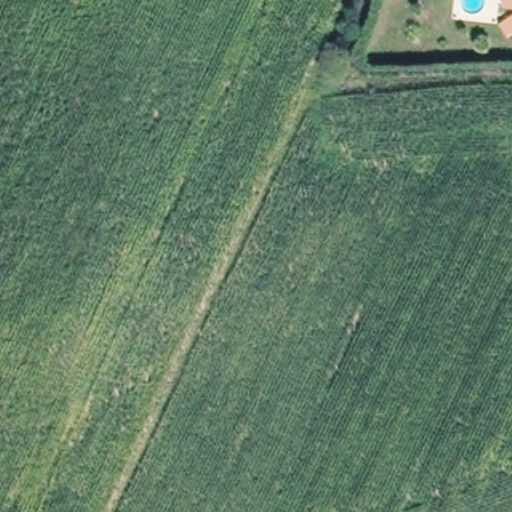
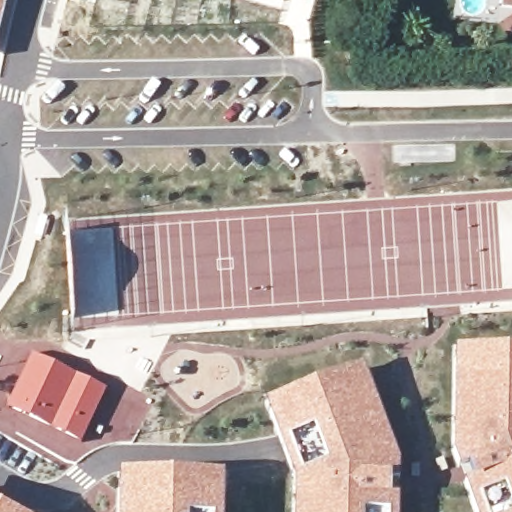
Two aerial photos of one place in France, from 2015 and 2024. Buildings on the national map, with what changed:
new [(0,0),(7,0),(0,28),(0,0)]
unchanged [(506,0),(512,0),(512,5),(505,4),(506,0)]
new [(512,348),(512,512),(476,512),(464,481),(472,475),(467,462),(459,467),(453,449),(455,347),(512,348)]
new [(32,353),(105,390),(81,441),(7,406),(32,353)]
new [(362,364),(399,460),(399,476),(392,475),(391,490),(399,490),(399,512),(294,512),(294,477),(266,402),(362,364)]
new [(224,512),(119,512),(120,472),(224,475),(224,512)]
new [(0,506),(13,512),(0,512),(0,506)]

